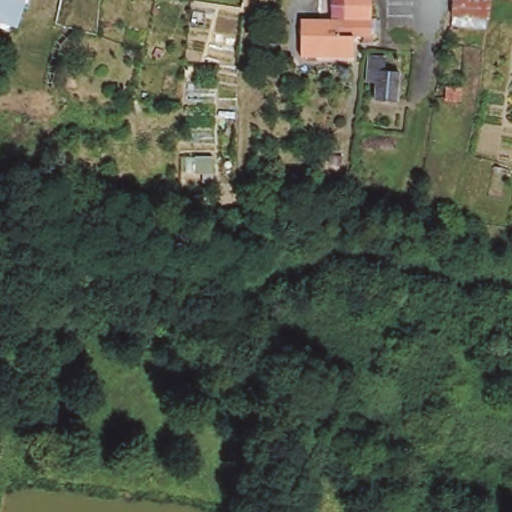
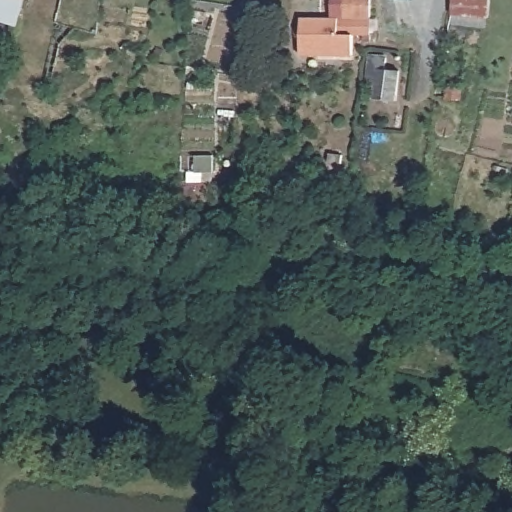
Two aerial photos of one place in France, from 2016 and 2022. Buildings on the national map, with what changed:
unchanged [(0,21),(0,0),(21,0),(15,26),(0,21)]
unchanged [(360,39),(348,38),(346,60),(294,57),(296,19),(328,20),(329,0),(371,0),(370,23),(369,44),(367,48),(361,44),(360,39)]
unchanged [(485,23),(451,18),(453,0),(487,0),(486,3),(485,23)]
unchanged [(400,104),(388,104),(375,103),(377,84),(368,83),(371,58),(387,59),(386,73),(390,74),(402,75),(400,104)]
unchanged [(283,413),(285,432),(280,432),(278,413),(283,413)]

